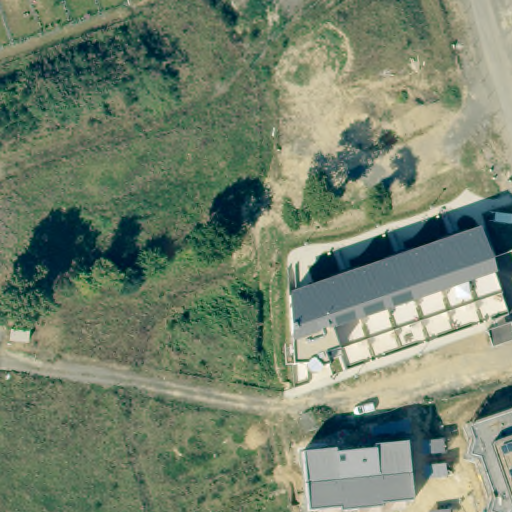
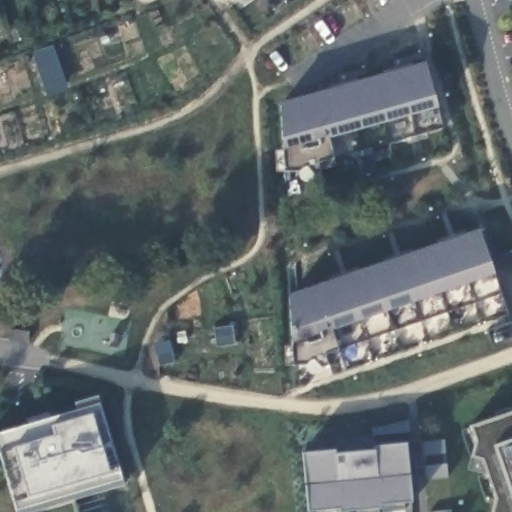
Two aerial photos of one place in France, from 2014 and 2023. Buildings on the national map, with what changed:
new [(427,62),(438,107),(442,127),(332,158),(317,163),(321,172),(306,184),(299,179),(299,170),(284,170),(284,148),(282,137),(281,101),(427,62)]
unchanged [(500,292),(339,348),(325,354),(328,364),(321,366),(313,358),(306,363),(294,363),(290,295),(479,229),(495,272),(500,292)]
new [(17,512),(2,457),(0,458),(0,432),(79,409),(76,402),(98,395),(125,485),(30,512),(17,512)]
unchanged [(484,458),(473,455),(478,441),(472,426),(512,413),(512,512),(494,512),(498,498),(484,458)]
unchanged [(305,452),(335,449),(336,454),(375,450),(373,444),(408,441),(413,501),(309,510),(305,452)]

